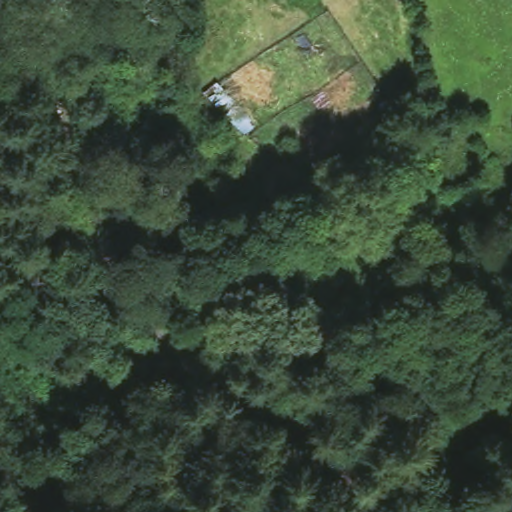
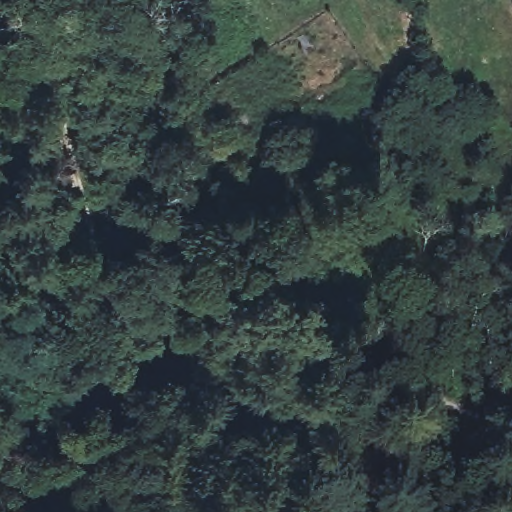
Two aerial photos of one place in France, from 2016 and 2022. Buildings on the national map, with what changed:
unchanged [(250,130),(229,141),(195,92),(215,81),(250,130)]

